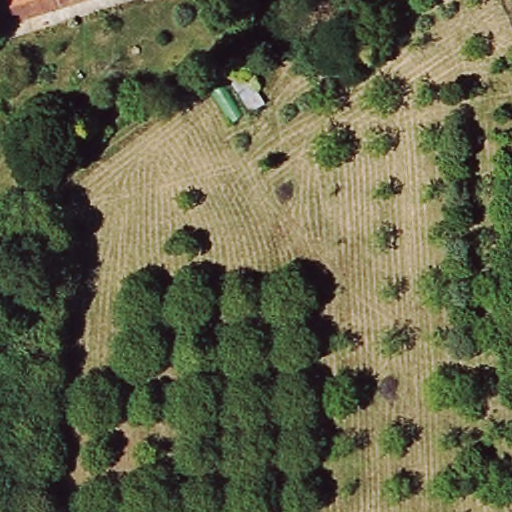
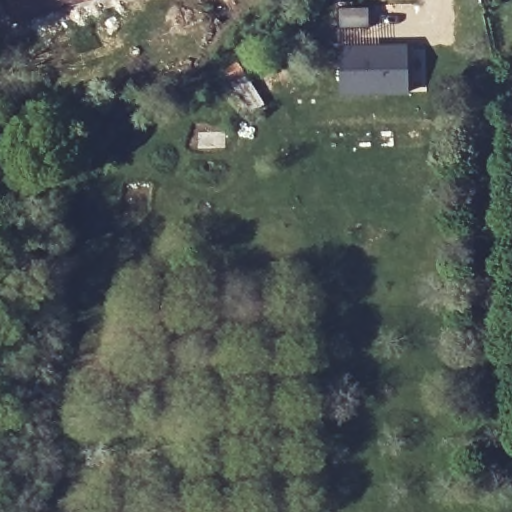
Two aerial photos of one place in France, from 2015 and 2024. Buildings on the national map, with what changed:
unchanged [(20,18),(14,0),(86,0),(20,18)]
new [(340,45),(406,41),(408,93),(341,94),(340,45)]

